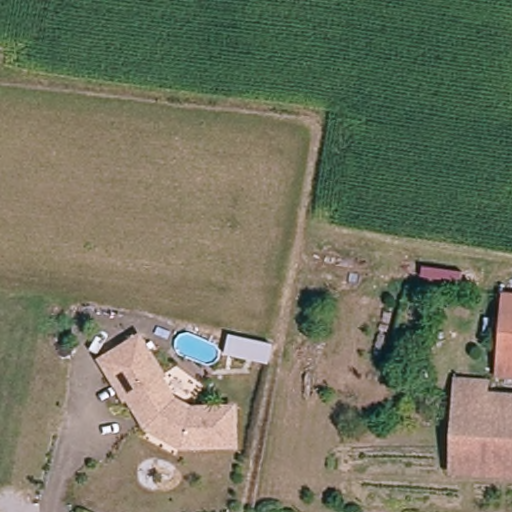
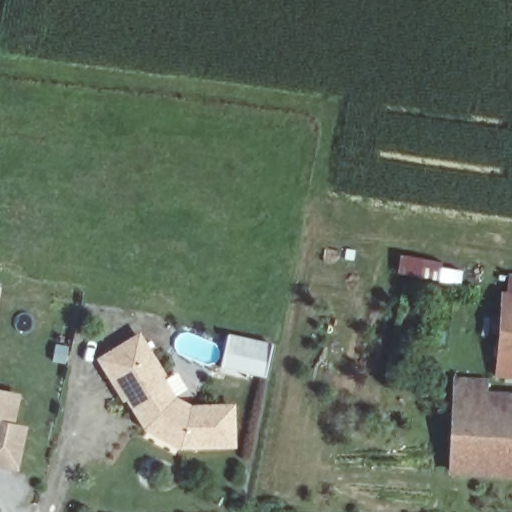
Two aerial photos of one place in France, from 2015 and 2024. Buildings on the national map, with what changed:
unchanged [(508,301),(509,293),(512,293),(512,375),(495,373),(508,301)]
unchanged [(122,398),(119,400),(107,378),(98,360),(139,339),(146,354),(159,378),(156,380),(168,404),(184,414),(225,414),(226,451),(174,452),(140,430),(137,426),(131,414),(122,398)]
unchanged [(268,368),(224,358),(229,340),(261,347),(272,350),(268,368)]
unchanged [(492,394),(512,396),(512,481),(451,472),(460,400),(464,378),(493,382),(492,394)]
new [(25,399),(17,431),(30,434),(26,451),(21,473),(0,468),(0,392),(25,399)]

